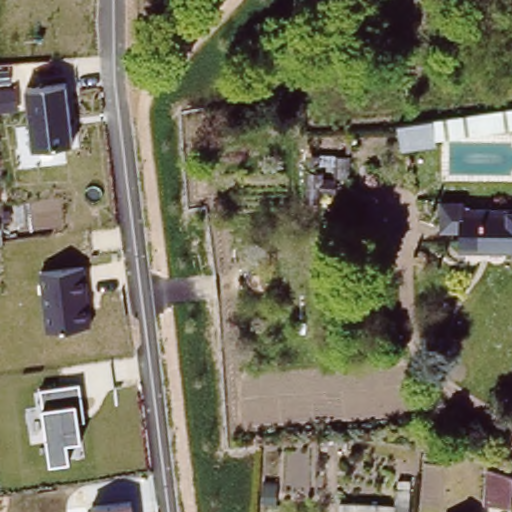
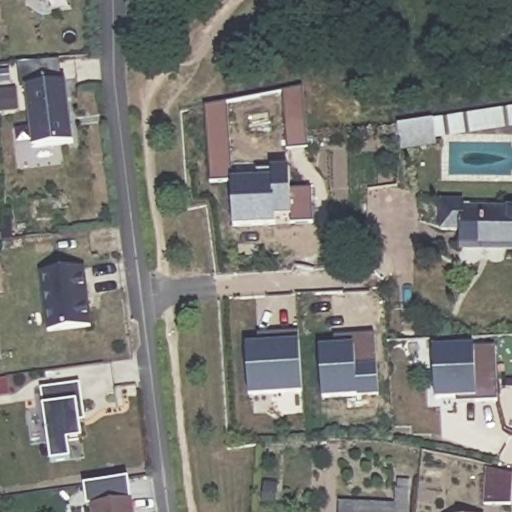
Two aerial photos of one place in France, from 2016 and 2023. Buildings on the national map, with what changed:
unchanged [(75,143),(32,148),(25,87),(67,82),(75,143)]
new [(285,148),(281,90),(303,86),(308,146),(285,148)]
new [(204,106),(225,102),(231,181),(210,182),(204,106)]
unchanged [(440,135),(440,130),(438,122),(437,119),(512,110),(512,129),(440,139),(440,135)]
unchanged [(425,124),(438,122),(439,127),(440,139),(406,145),(403,128),(425,124)]
demolished [(333,180),(333,191),(320,191),(319,200),(305,198),(307,177),(308,153),(347,155),(345,173),(335,173),(336,160),(320,159),(318,171),(321,171),(322,177),(322,179),(333,180)]
new [(257,180),(255,169),(289,167),(290,189),(312,189),(313,221),(291,222),(290,195),(273,195),(275,225),(233,226),(231,181),(257,180)]
unchanged [(467,212),(512,213),(512,253),(466,252),(467,212)]
unchanged [(85,265),(92,325),(47,332),(39,270),(85,265)]
new [(247,343),(257,342),(257,334),(299,333),(300,341),(305,392),(249,395),(247,343)]
new [(377,364),(378,394),(324,396),(320,346),(333,345),(335,337),(374,334),(377,364)]
new [(497,399),(476,398),(435,400),(435,348),(475,346),(494,347),(497,399)]
unchanged [(81,380),(85,407),(87,419),(81,420),(83,438),(69,441),(72,460),(50,464),(40,387),(81,380)]
unchanged [(510,504),(482,503),(485,467),(512,474),(510,504)]
unchanged [(395,504),(397,486),(409,487),(408,512),(340,512),(340,502),(395,504)]
unchanged [(91,512),(90,505),(134,500),(135,512),(91,512)]

